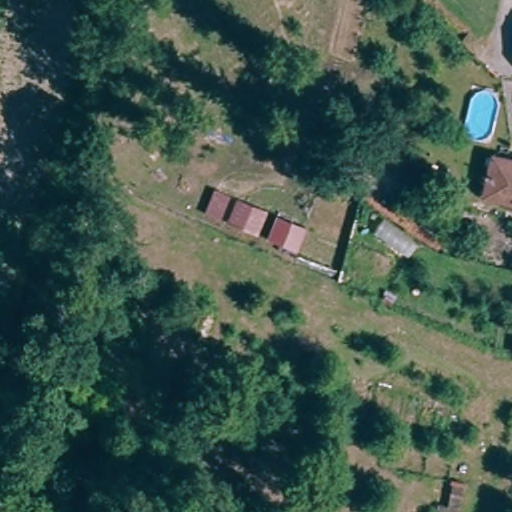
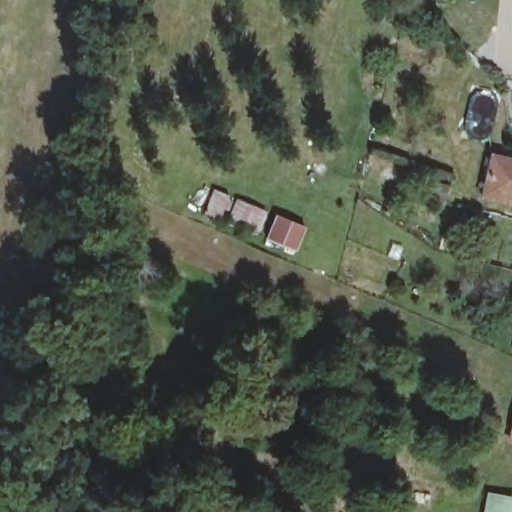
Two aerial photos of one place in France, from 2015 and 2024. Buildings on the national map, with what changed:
unchanged [(484,200),(492,163),(512,167),(512,207),(484,200)]
new [(508,444),(512,422),(512,445),(508,444)]
new [(487,493),(512,498),(512,512),(483,512),(487,493)]

